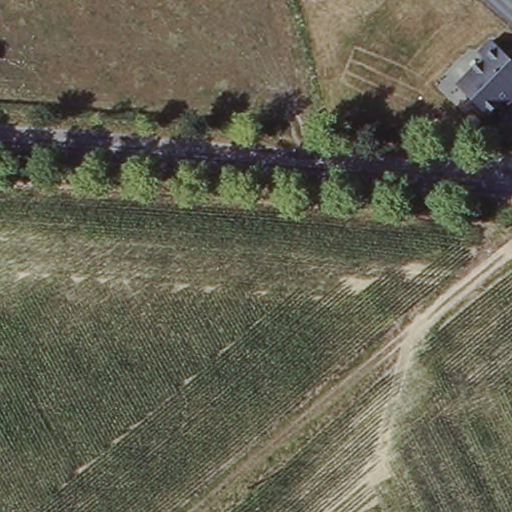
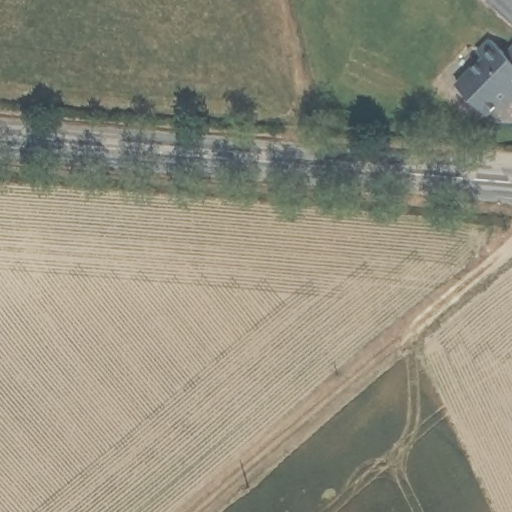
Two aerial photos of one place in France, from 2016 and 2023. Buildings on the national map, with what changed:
unchanged [(505,104),(488,120),(458,90),(486,62),(480,57),(493,44),(508,60),(512,56),(512,103),(508,107),(505,104)]

